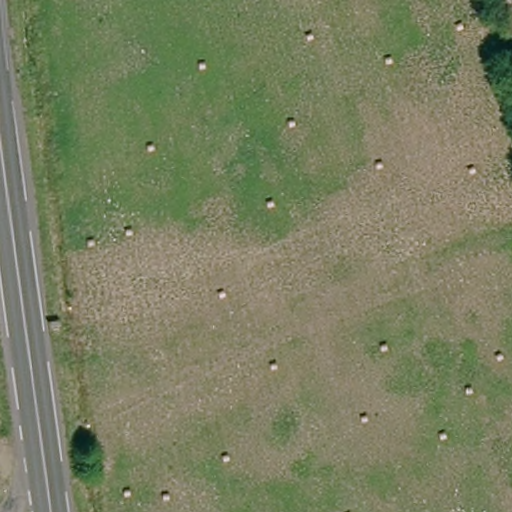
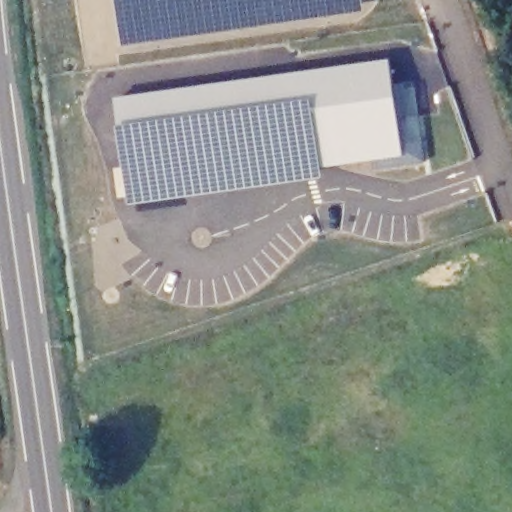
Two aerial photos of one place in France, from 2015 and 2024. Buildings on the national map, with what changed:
new [(122,46),(115,0),(362,0),(363,10),(122,46)]
new [(321,169),(322,177),(129,204),(117,125),(114,97),(389,58),(393,88),(414,85),(425,162),(375,170),(373,159),(321,169)]

